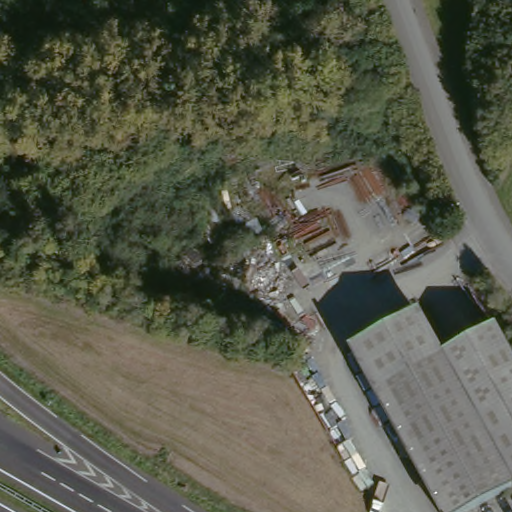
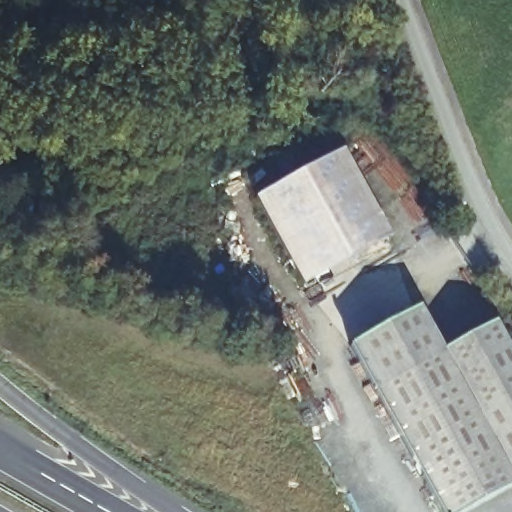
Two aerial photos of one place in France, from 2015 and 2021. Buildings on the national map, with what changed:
new [(339,160),(388,246),(303,293),(255,206),(339,160)]
unchanged [(413,314),(436,355),(490,325),(512,365),(512,488),(468,512),(437,512),(370,392),(347,351),(413,314)]

